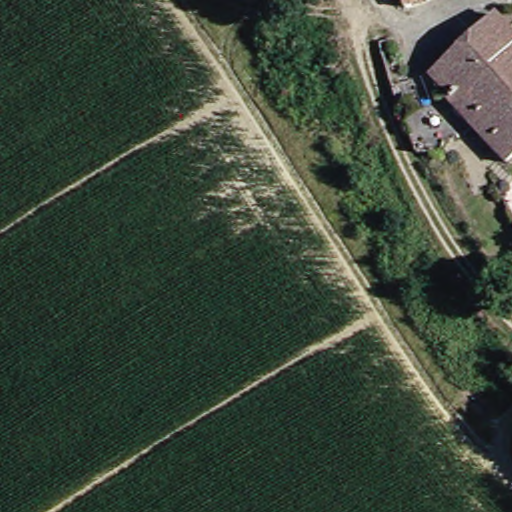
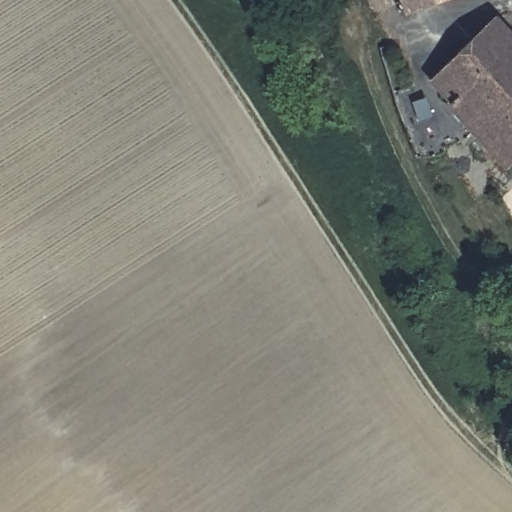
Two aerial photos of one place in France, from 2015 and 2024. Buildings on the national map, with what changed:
unchanged [(451,0),(439,4),(412,16),(408,2),(407,0),(451,0)]
unchanged [(455,99),(436,79),(439,75),(499,17),(512,31),(512,164),(454,103),(455,99)]

